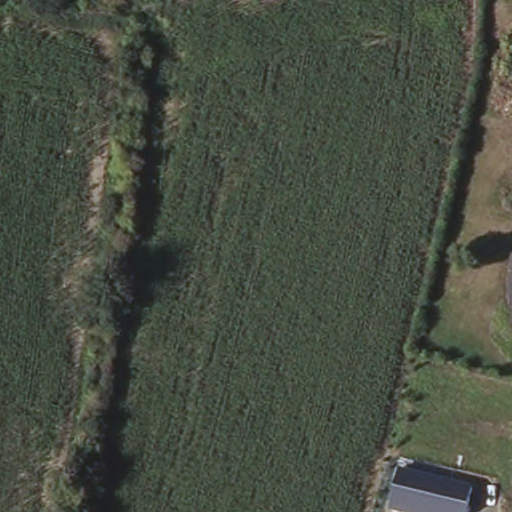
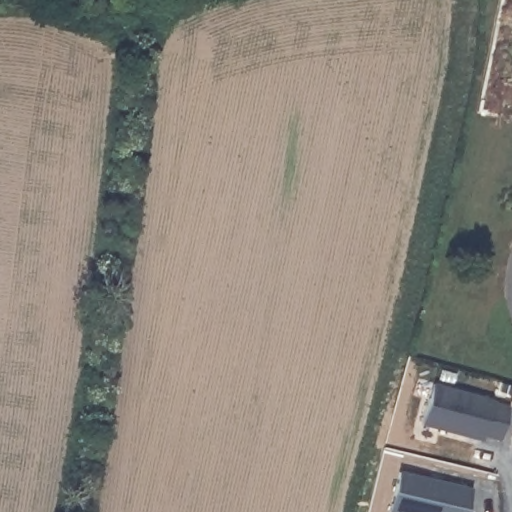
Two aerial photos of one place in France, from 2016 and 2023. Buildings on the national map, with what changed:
new [(495,397),(495,400),(511,405),(502,438),(485,435),(484,441),(423,426),(433,383),(495,397)]
unchanged [(400,472),(474,487),(470,512),(391,512),(400,472)]

